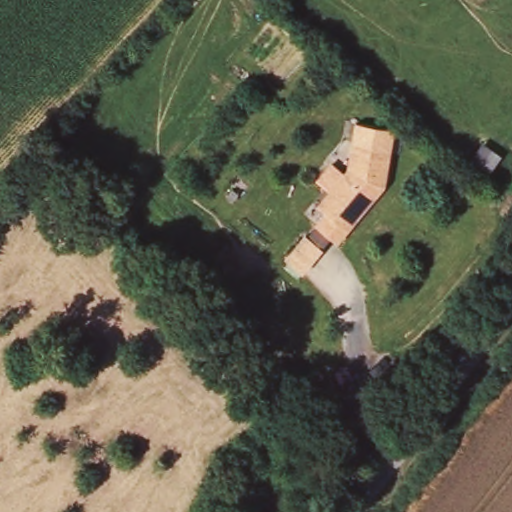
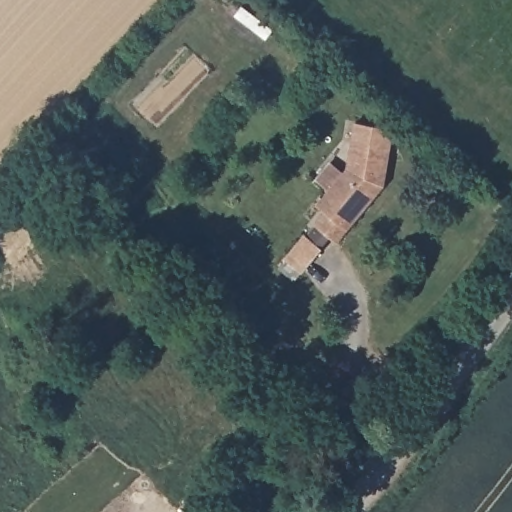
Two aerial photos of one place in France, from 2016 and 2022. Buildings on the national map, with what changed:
unchanged [(336,237),(321,225),(341,200),(332,194),(352,169),(357,142),(394,149),(388,185),(352,228),(342,242),(336,237)]
unchanged [(302,267),(286,254),(305,231),(321,244),(302,267)]

